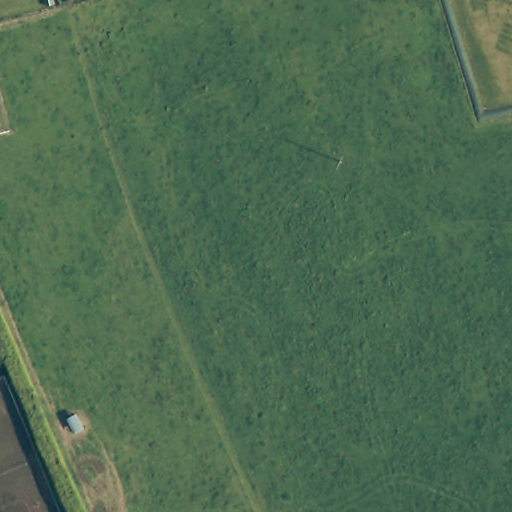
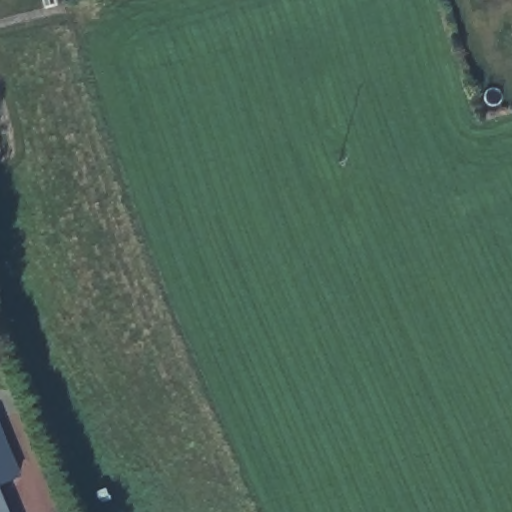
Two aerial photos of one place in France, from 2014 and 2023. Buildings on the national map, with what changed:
new [(21,473),(0,483),(0,427),(21,473)]
new [(7,512),(0,512),(0,495),(7,512)]

